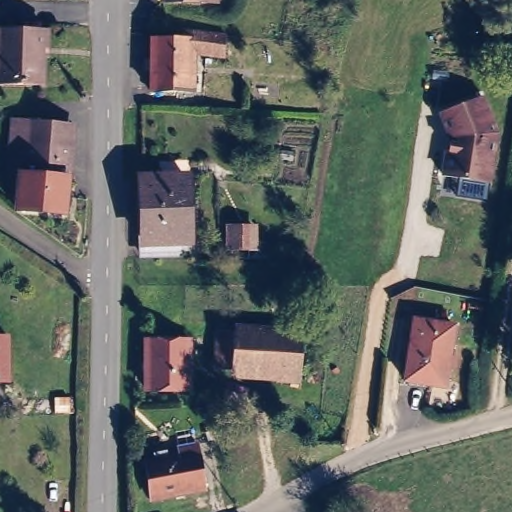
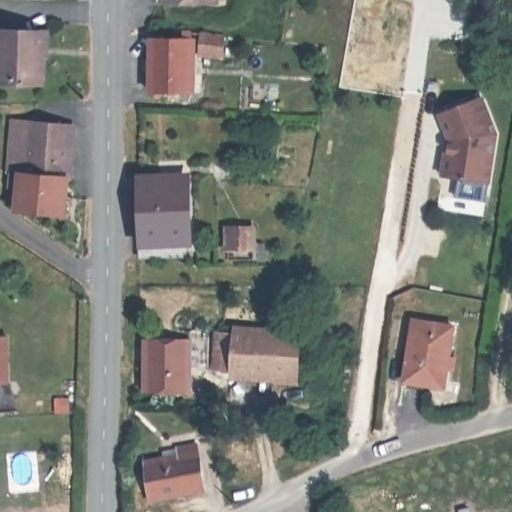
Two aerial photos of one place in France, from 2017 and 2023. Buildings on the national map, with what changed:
unchanged [(0,27),(23,27),(27,27),(28,49),(23,49),(22,81),(0,81),(0,27)]
unchanged [(190,94),(152,91),(153,70),(147,70),(148,58),(155,57),(157,36),(185,38),(185,30),(200,31),(228,35),(227,55),(206,55),(193,53),(190,94)]
unchanged [(498,135),(491,184),(446,176),(450,154),(452,154),(453,140),(443,114),(484,98),(498,135)]
unchanged [(22,209),(25,169),(17,169),(20,124),(20,120),(37,121),(74,124),(68,211),(22,209)]
unchanged [(185,236),(182,236),(182,248),(154,248),(154,235),(142,235),(142,172),(187,174),(185,236)]
unchanged [(252,245),(223,243),(225,222),(254,225),(252,245)]
unchanged [(407,376),(417,315),(457,322),(447,383),(407,376)]
unchanged [(242,367),(227,366),(230,330),(245,331),(312,336),(309,371),(242,367)]
unchanged [(0,382),(0,335),(10,335),(12,382),(0,382)]
unchanged [(184,385),(144,385),(144,335),(185,336),(184,385)]
unchanged [(207,488),(155,499),(148,464),(180,458),(178,450),(199,446),(207,488)]

